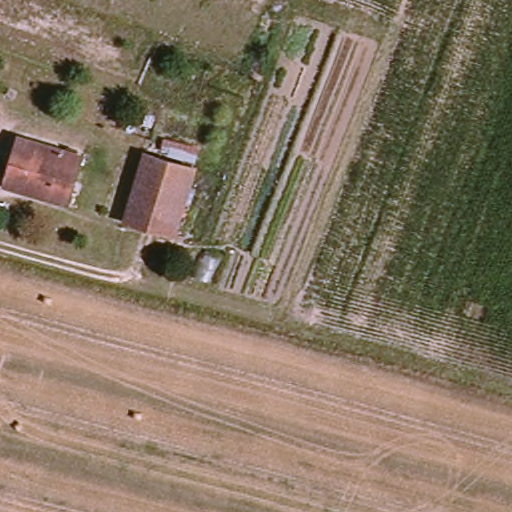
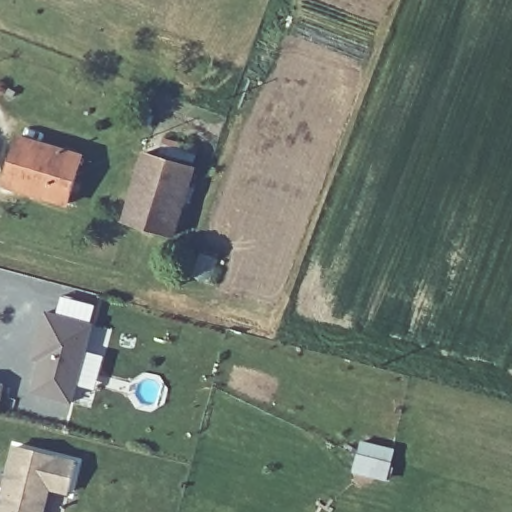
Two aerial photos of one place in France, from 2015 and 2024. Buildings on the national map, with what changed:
unchanged [(0,183),(0,180),(15,131),(78,152),(62,203),(0,183)]
unchanged [(167,239),(127,227),(148,157),(194,171),(167,239)]
new [(40,371),(42,362),(31,359),(42,313),(54,316),(59,297),(92,305),(87,325),(89,325),(70,404),(30,393),(36,370),(40,371)]
new [(68,494),(51,490),(45,512),(0,512),(0,504),(14,445),(77,459),(68,494)]

